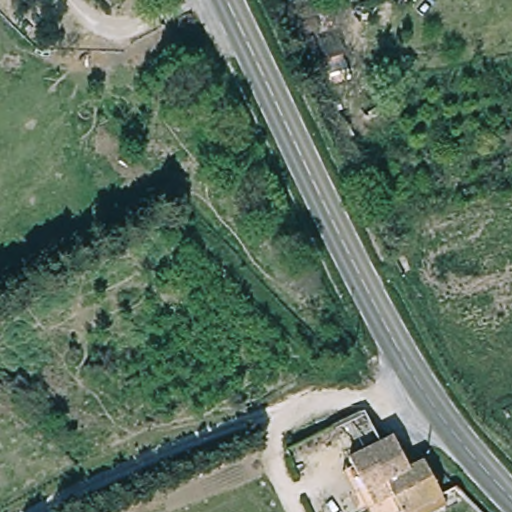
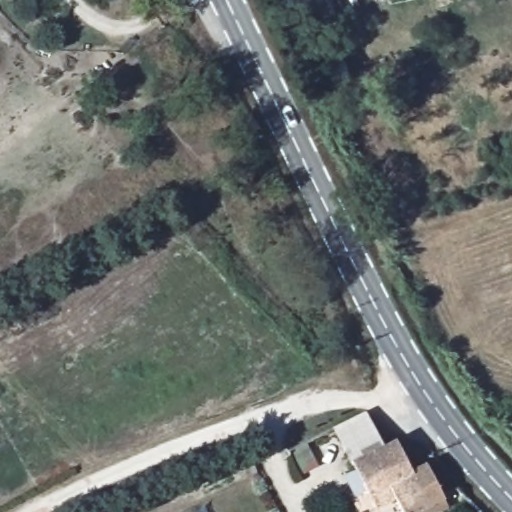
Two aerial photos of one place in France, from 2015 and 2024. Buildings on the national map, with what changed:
unchanged [(304,22),(306,30),(286,35),(284,27),(304,22)]
unchanged [(331,94),(314,99),(301,51),(318,46),(331,94)]
unchanged [(368,413),(383,443),(348,460),(333,429),(368,413)]
unchanged [(394,437),(410,468),(424,461),(449,512),(399,512),(393,498),(366,512),(356,493),(353,495),(343,475),(353,470),(348,460),(383,443),(394,437)]

